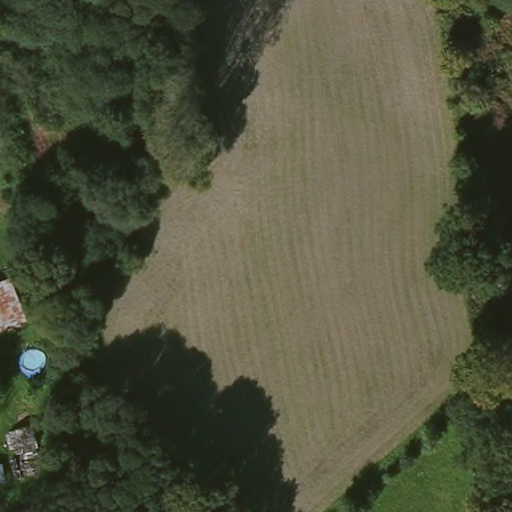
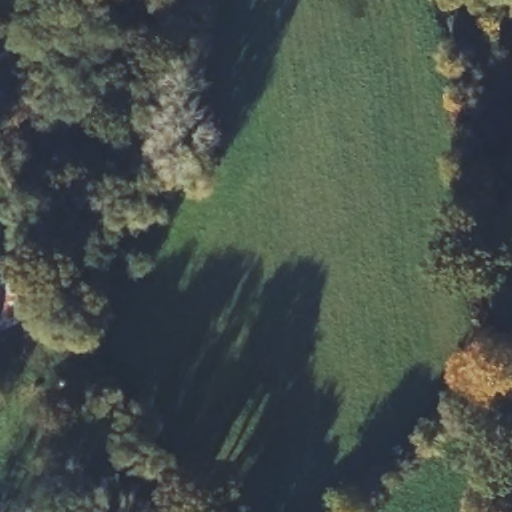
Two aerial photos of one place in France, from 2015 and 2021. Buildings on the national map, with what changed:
unchanged [(40,319),(6,331),(0,315),(0,281),(21,273),(40,319)]

